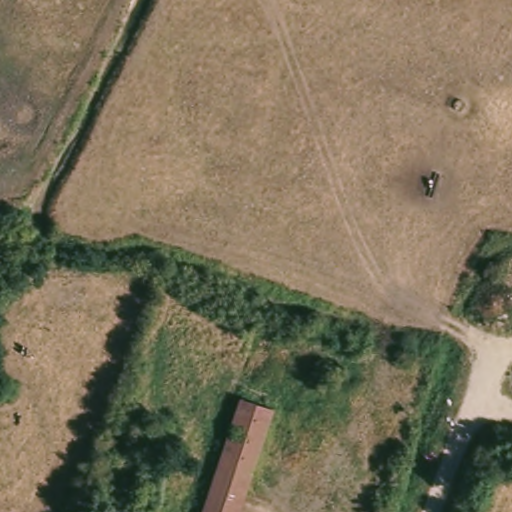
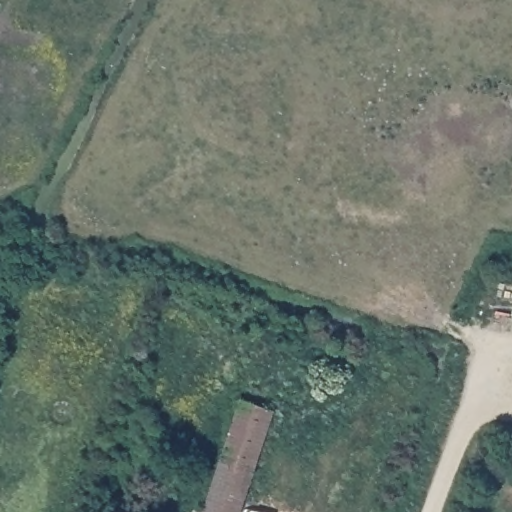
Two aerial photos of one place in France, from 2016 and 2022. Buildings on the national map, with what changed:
unchanged [(238,512),(203,512),(238,407),(270,417),(238,512)]

